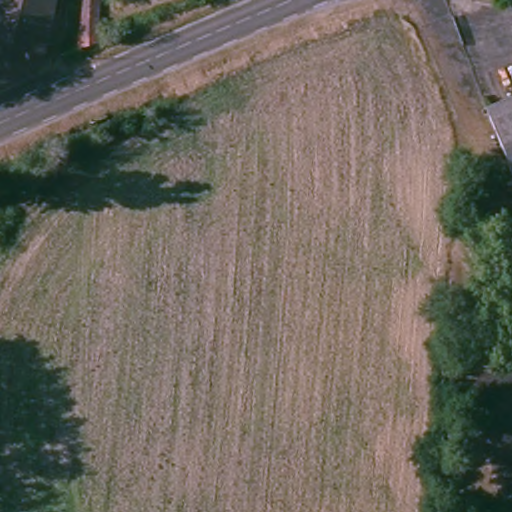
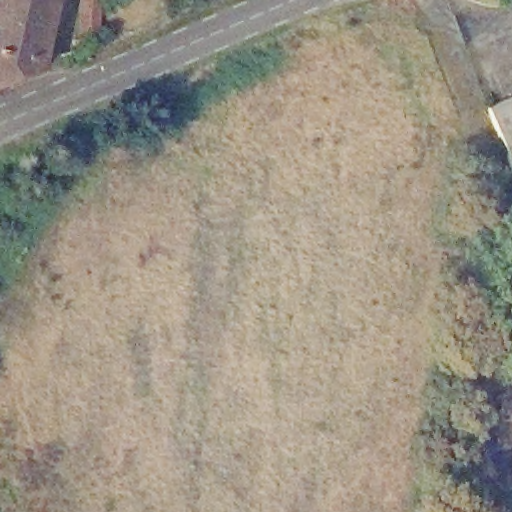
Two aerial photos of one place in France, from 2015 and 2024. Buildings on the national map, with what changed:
unchanged [(57,0),(48,60),(0,79),(0,0),(57,0)]
unchanged [(82,0),(99,0),(99,35),(82,42),(82,0)]
unchanged [(512,100),(512,164),(491,108),(512,100)]

